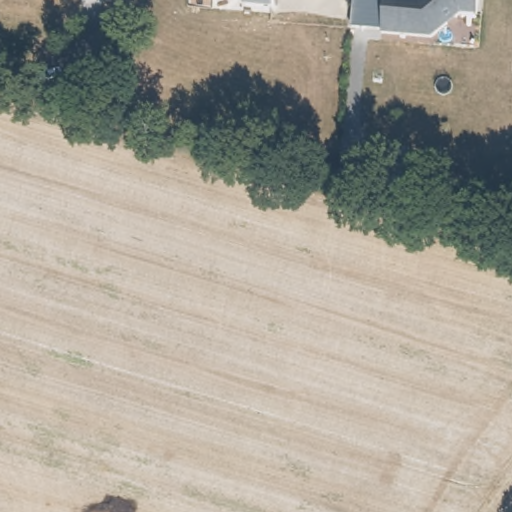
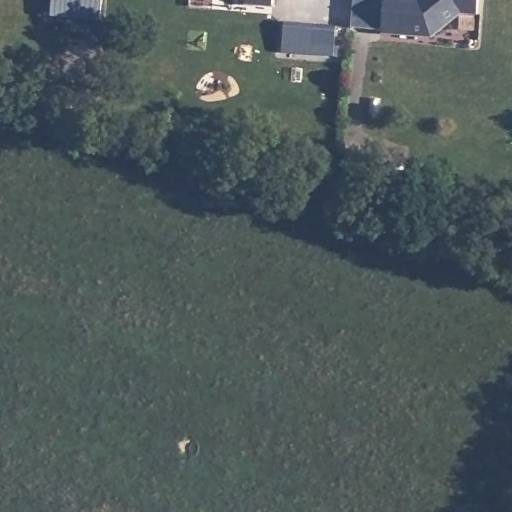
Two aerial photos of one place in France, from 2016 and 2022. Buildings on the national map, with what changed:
new [(102,21),(50,17),(52,0),(103,0),(102,21)]
unchanged [(273,9),(246,6),(246,0),(274,0),(273,9)]
unchanged [(478,14),(456,12),(431,36),(383,32),(387,0),(479,0),(478,14)]
new [(333,55),(281,51),(284,21),(336,25),(333,55)]

